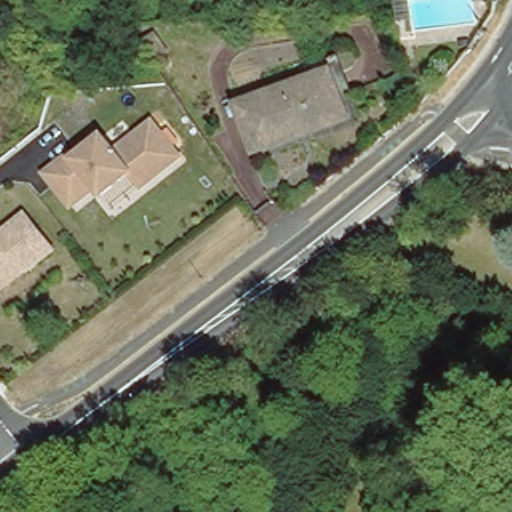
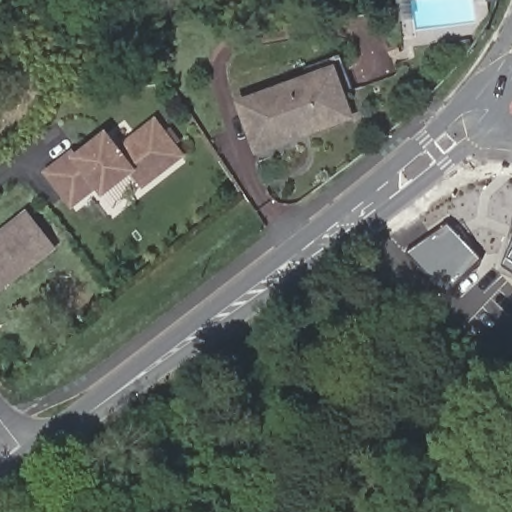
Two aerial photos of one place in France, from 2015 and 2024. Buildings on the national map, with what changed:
unchanged [(486,1),(486,0),(494,0),(486,1)]
unchanged [(334,70),(352,120),(265,150),(256,154),(238,101),(244,100),(334,70)]
unchanged [(155,122),(182,156),(143,186),(132,172),(103,195),(97,187),(72,206),(47,174),(73,154),(76,159),(97,143),(106,136),(110,142),(118,151),(155,122)]
unchanged [(27,214),(55,250),(27,271),(0,293),(0,235),(27,214)]
new [(445,221),(482,260),(445,295),(408,255),(445,221)]
demolished [(273,241),(252,258),(240,241),(262,226),(264,229),(273,241)]
new [(512,242),(512,273),(502,266),(512,242)]

